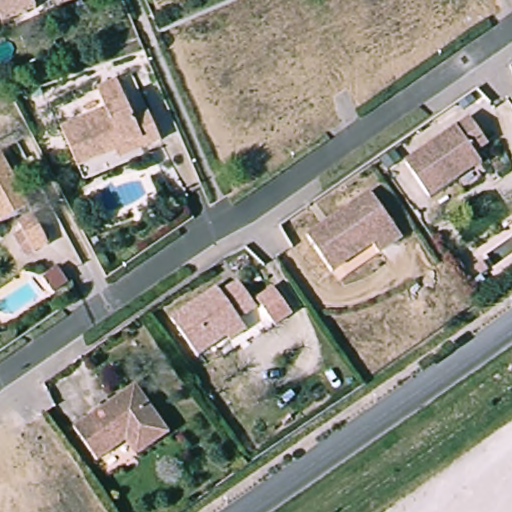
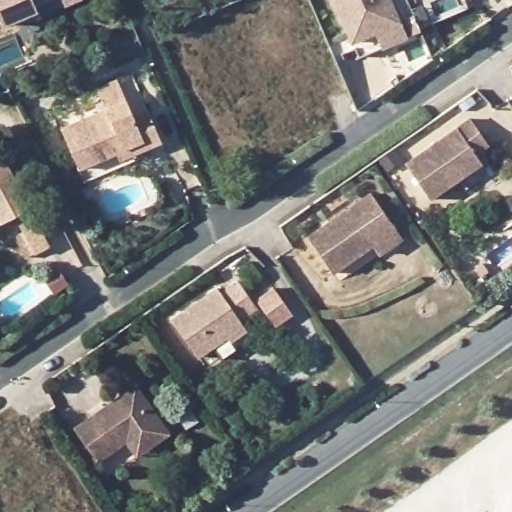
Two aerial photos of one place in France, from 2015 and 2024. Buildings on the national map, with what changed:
unchanged [(29,14),(3,24),(0,18),(0,0),(44,0),(25,8),(29,14)]
unchanged [(64,0),(73,0),(66,3),(64,0)]
new [(413,15),(422,33),(407,39),(382,49),(377,34),(351,44),(331,0),(392,0),(401,21),(413,15)]
unchanged [(149,149),(144,143),(83,166),(68,126),(110,111),(102,89),(121,81),(137,116),(150,113),(166,143),(149,149)]
unchanged [(488,138),(475,146),(481,156),(430,192),(405,156),(470,111),(488,138)]
unchanged [(29,205),(0,221),(0,153),(29,205)]
unchanged [(376,247),(370,238),(330,267),(305,232),(320,221),(326,217),(367,188),(398,231),(376,247)]
unchanged [(52,238),(36,247),(19,221),(37,211),(52,238)]
unchanged [(223,342),(219,338),(193,354),(167,317),(211,287),(216,293),(232,281),(251,308),(233,321),(237,327),(240,332),(223,342)]
unchanged [(269,290),(287,317),(271,328),(252,301),(269,290)]
unchanged [(375,344),(381,340),(387,348),(381,352),(375,344)]
unchanged [(136,454),(125,442),(115,450),(102,460),(75,427),(135,384),(166,427),(170,433),(136,454)]

